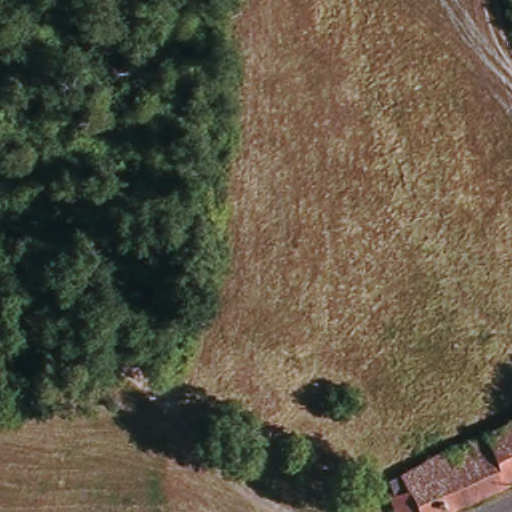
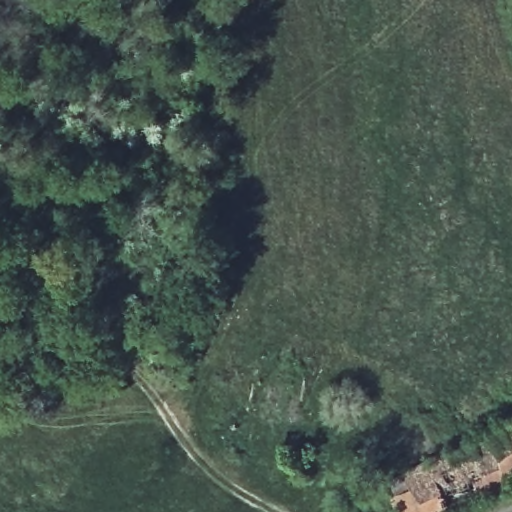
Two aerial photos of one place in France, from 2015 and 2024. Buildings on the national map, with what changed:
unchanged [(429,512),(395,512),(388,497),(401,491),(396,481),(440,453),(512,424),(512,478),(429,512)]

